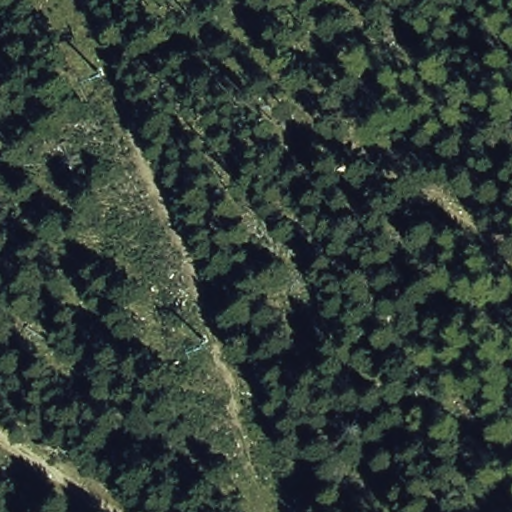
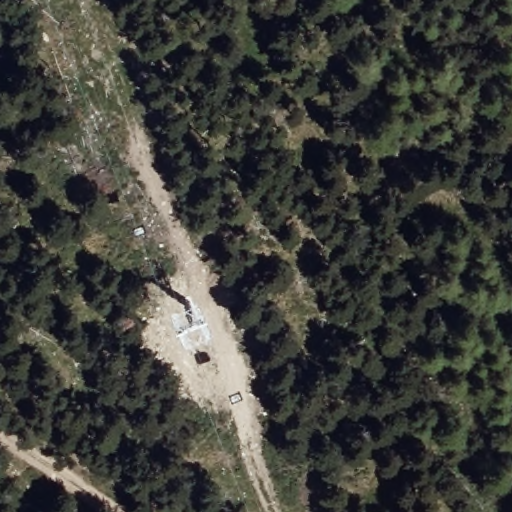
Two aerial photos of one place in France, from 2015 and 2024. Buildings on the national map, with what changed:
[]

